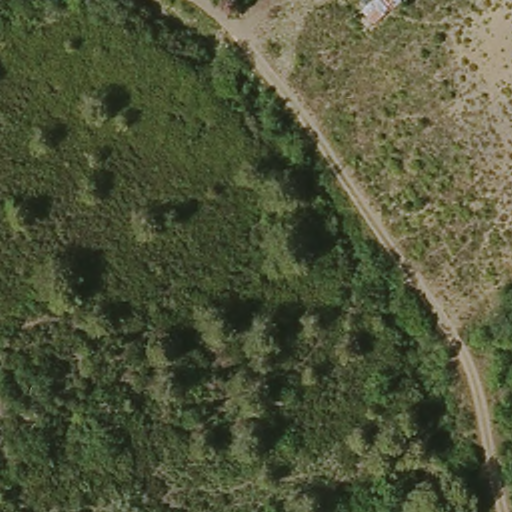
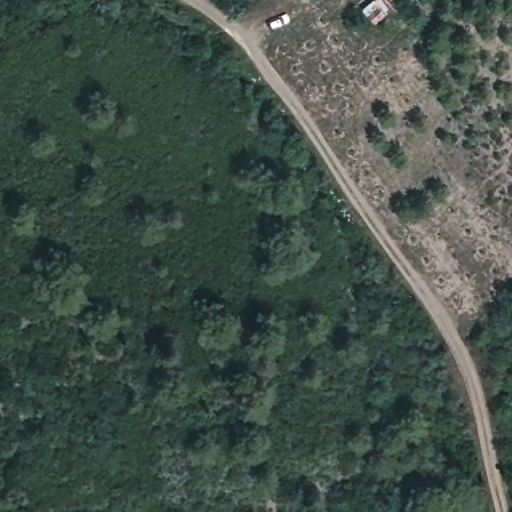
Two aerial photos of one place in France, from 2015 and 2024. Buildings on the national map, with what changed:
unchanged [(377,6),(375,0),(395,0),(377,6)]

